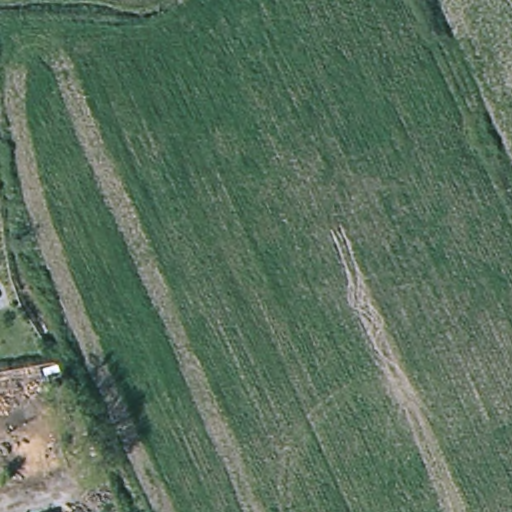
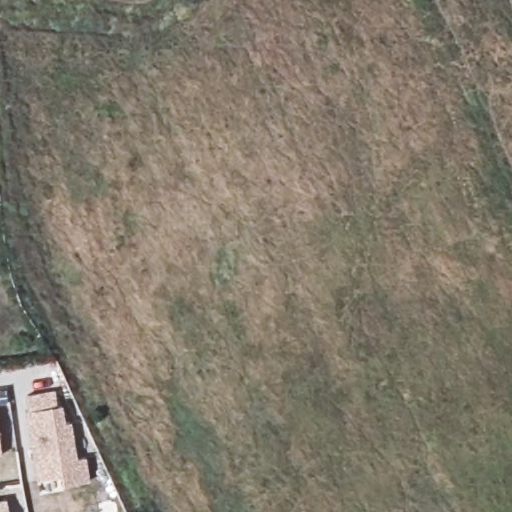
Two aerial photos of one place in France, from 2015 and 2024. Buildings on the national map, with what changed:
new [(54,391),(57,406),(62,406),(65,422),(71,422),(77,458),(86,457),(89,481),(61,485),(60,477),(36,481),(25,411),(28,411),(26,395),(54,391)]
new [(2,455),(0,455),(0,442),(2,455)]
new [(6,499),(8,512),(0,512),(0,500),(6,499)]

